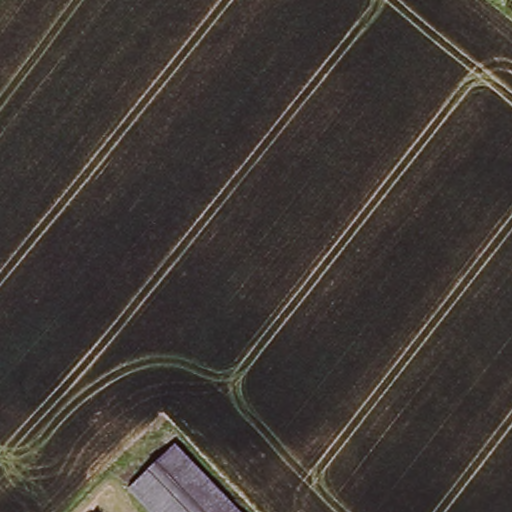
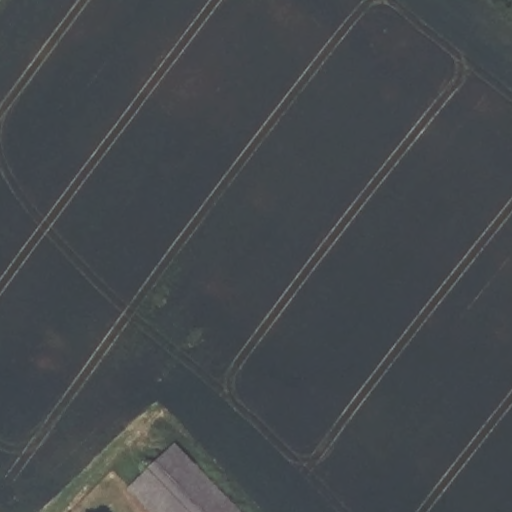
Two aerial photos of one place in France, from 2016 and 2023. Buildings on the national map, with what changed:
unchanged [(248,512),(158,512),(130,483),(177,438),(248,512)]

